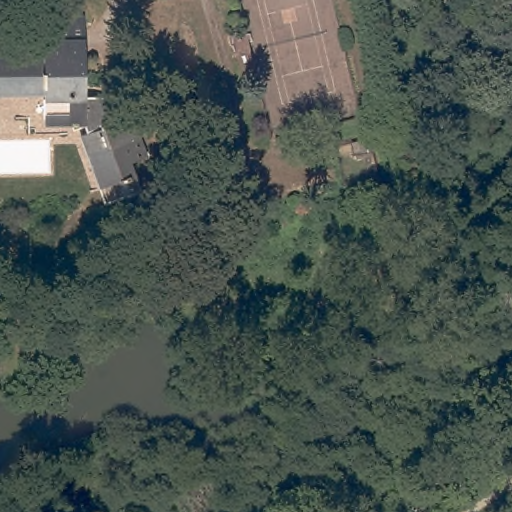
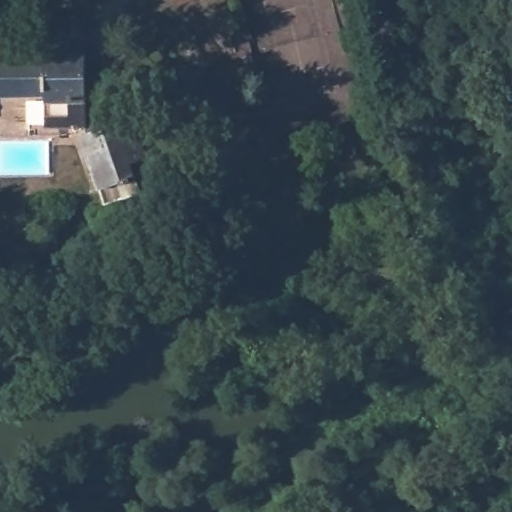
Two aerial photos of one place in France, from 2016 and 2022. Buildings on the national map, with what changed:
unchanged [(86,154),(80,135),(85,134),(80,119),(44,119),(44,92),(0,93),(0,59),(43,59),(43,17),(84,16),(85,96),(110,96),(111,110),(115,122),(131,117),(146,156),(130,162),(134,175),(140,190),(104,203),(99,187),(86,154)]
unchanged [(353,143),(370,139),(373,151),(355,155),(353,143)]

